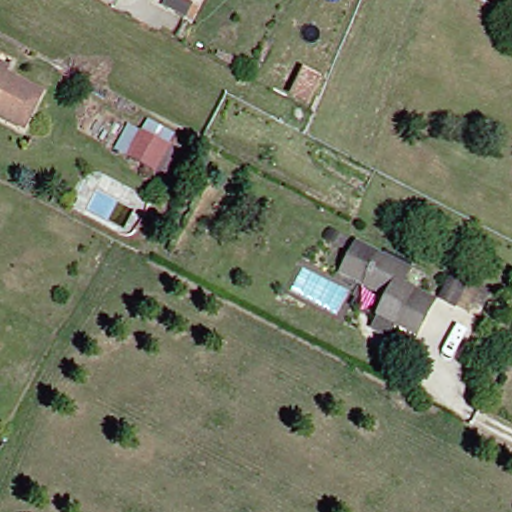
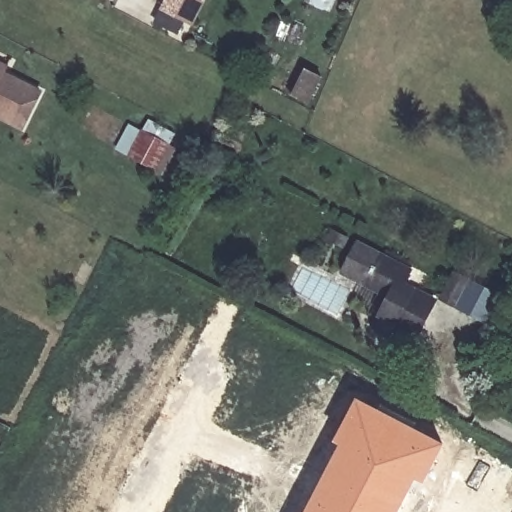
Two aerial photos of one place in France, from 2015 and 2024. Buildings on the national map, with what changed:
unchanged [(12,122),(0,116),(0,71),(29,85),(12,122)]
unchanged [(170,144),(156,171),(69,122),(84,95),(170,144)]
unchanged [(347,238),(343,245),(329,238),(332,230),(347,238)]
unchanged [(325,272),(337,250),(360,262),(386,276),(382,283),(414,299),(397,333),(376,321),(369,334),(354,327),(371,296),(344,282),(325,272)]
unchanged [(436,269),(449,276),(437,302),(423,295),(436,269)]
new [(334,441),(359,397),(447,443),(426,483),(418,478),(400,512),(305,512),(340,443),(334,441)]

